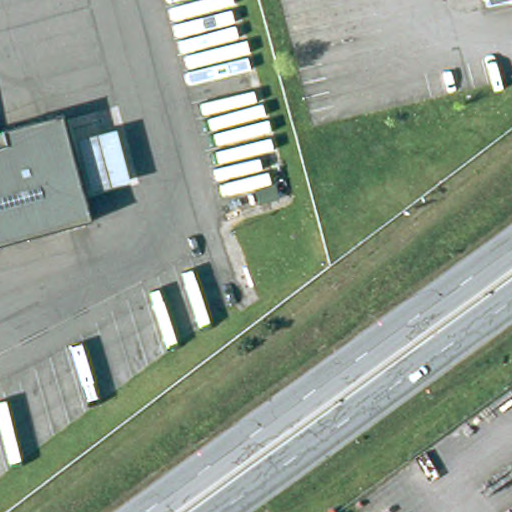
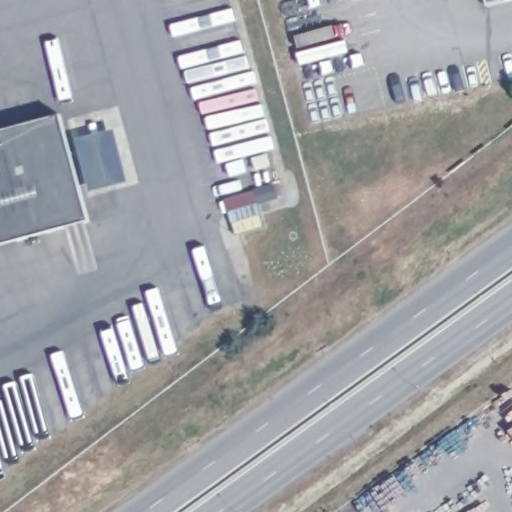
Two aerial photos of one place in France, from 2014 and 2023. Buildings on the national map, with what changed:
unchanged [(58,116),(85,223),(0,245),(0,131),(58,116)]
unchanged [(114,129),(127,181),(86,192),(72,140),(114,129)]

